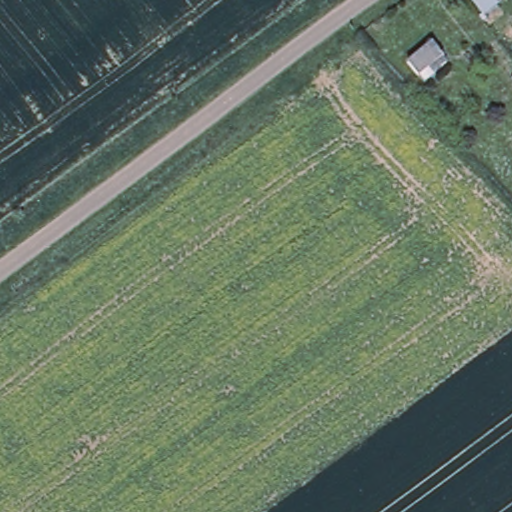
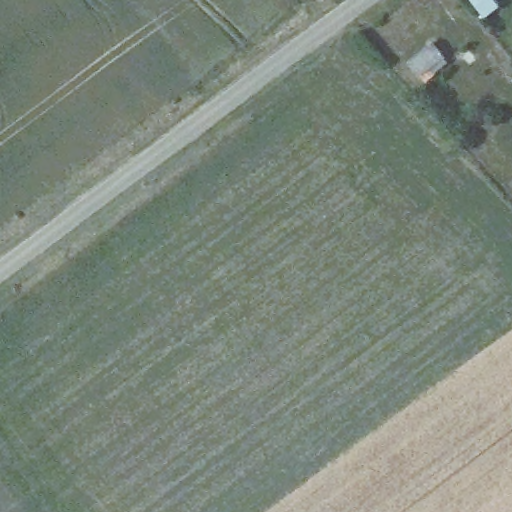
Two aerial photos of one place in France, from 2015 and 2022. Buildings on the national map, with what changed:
unchanged [(417,64),(437,48),(442,44),(452,57),(448,61),(428,77),(417,64)]

